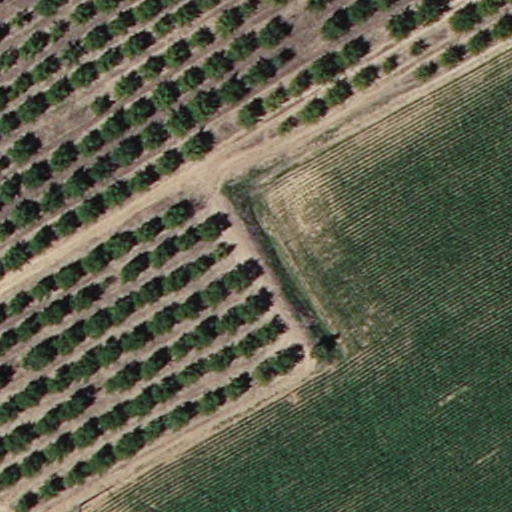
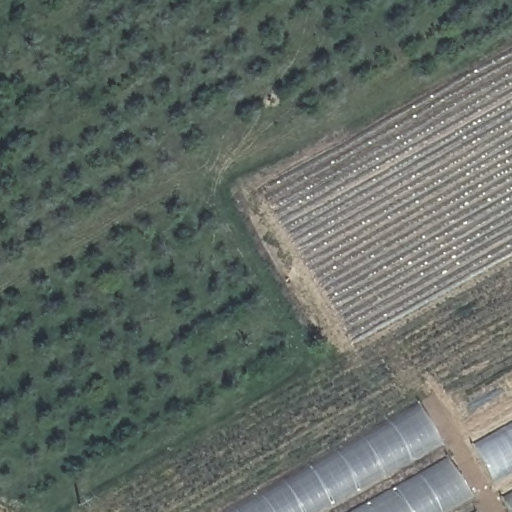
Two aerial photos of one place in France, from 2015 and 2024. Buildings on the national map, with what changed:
new [(441,445),(321,512),(221,512),(417,403),(441,445)]
new [(512,421),(512,472),(492,483),(471,444),(512,421)]
new [(473,497),(445,512),(349,512),(448,458),(473,497)]
new [(511,512),(503,496),(512,491),(512,512),(511,512)]

